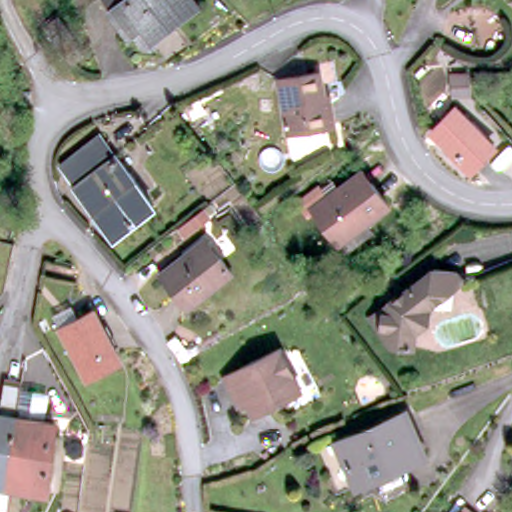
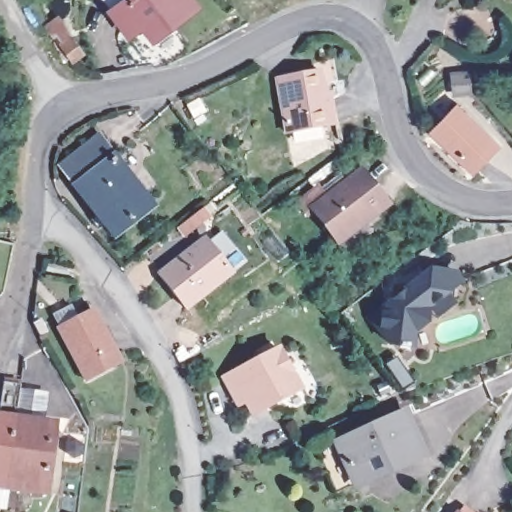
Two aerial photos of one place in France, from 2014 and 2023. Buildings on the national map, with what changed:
unchanged [(115,3),(118,0),(183,0),(186,3),(145,34),(115,3)]
unchanged [(83,88),(70,77),(62,71),(55,60),(66,49),(82,62),(106,82),(83,88)]
unchanged [(321,91),(327,90),(329,99),(332,119),(280,127),(272,76),(317,69),(321,91)]
unchanged [(451,77),(456,92),(440,96),(436,82),(451,77)]
unchanged [(490,148),(466,171),(427,132),(451,109),(490,148)]
unchanged [(110,243),(103,234),(110,228),(68,178),(108,146),(165,214),(125,246),(116,237),(110,243)]
unchanged [(382,205),(360,221),(368,231),(341,252),(306,204),(300,197),(313,186),(318,194),(353,167),(382,205)]
unchanged [(153,267),(178,248),(183,254),(205,238),(230,273),(183,306),(153,267)]
unchanged [(452,273),(461,284),(452,291),(435,303),(423,312),(430,329),(426,329),(420,331),(415,334),(413,348),(388,343),(369,317),(378,310),(433,269),(452,273)]
unchanged [(90,373),(60,322),(93,301),(111,352),(90,373)]
unchanged [(235,400),(223,383),(273,347),(302,384),(260,416),(251,403),(242,409),(235,400)]
unchanged [(26,391),(21,421),(51,429),(37,500),(0,492),(0,419),(6,420),(10,388),(26,391)]
unchanged [(402,414),(421,456),(355,485),(343,457),(336,442),(382,423),(402,414)]

